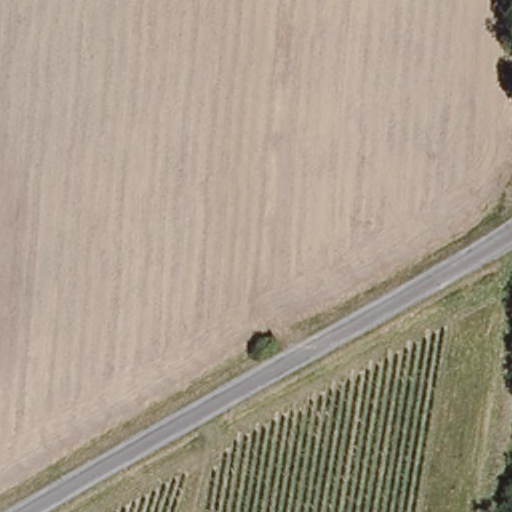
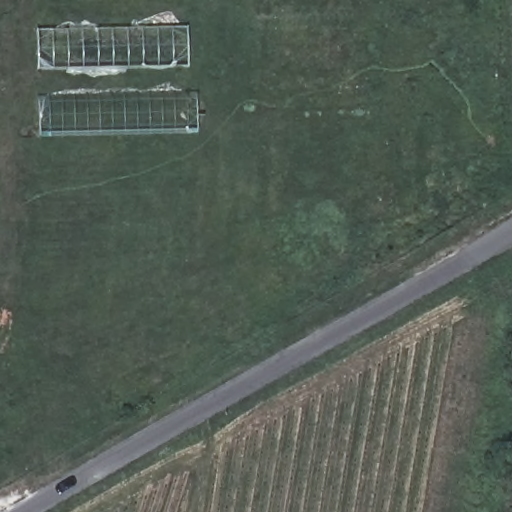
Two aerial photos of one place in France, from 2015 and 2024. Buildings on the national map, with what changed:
new [(37,29),(188,26),(189,67),(38,71),(37,29)]
new [(38,95),(196,92),(197,132),(39,137),(38,95)]

